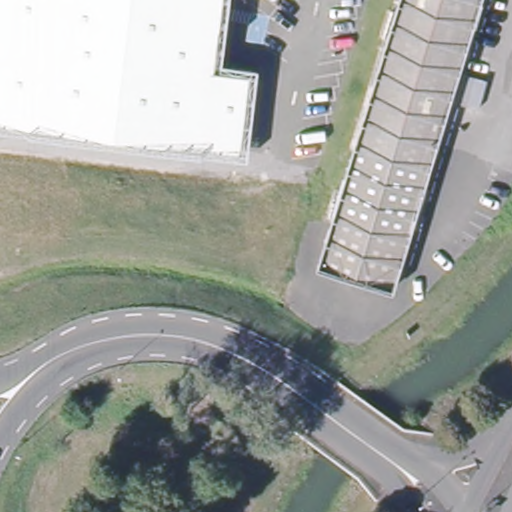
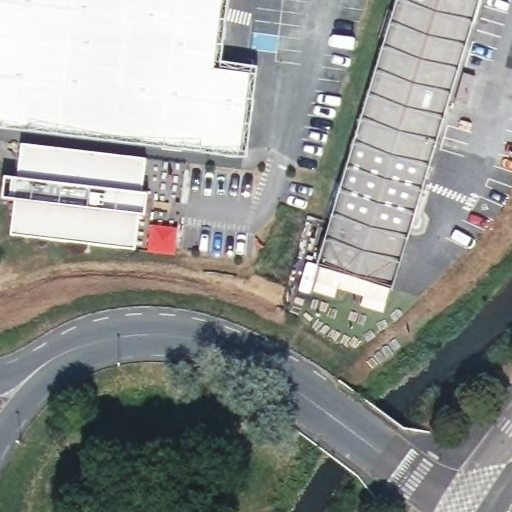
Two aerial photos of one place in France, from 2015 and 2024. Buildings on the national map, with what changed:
unchanged [(209,70),(253,75),(245,150),(0,119),(0,0),(218,0),(209,70)]
unchanged [(401,0),(479,0),(449,100),(394,280),(325,260),(401,0)]
new [(158,217),(145,215),(141,249),(16,231),(20,197),(7,195),(11,172),(23,174),(28,140),(153,157),(148,191),(161,192),(160,200),(159,209),(158,217)]

